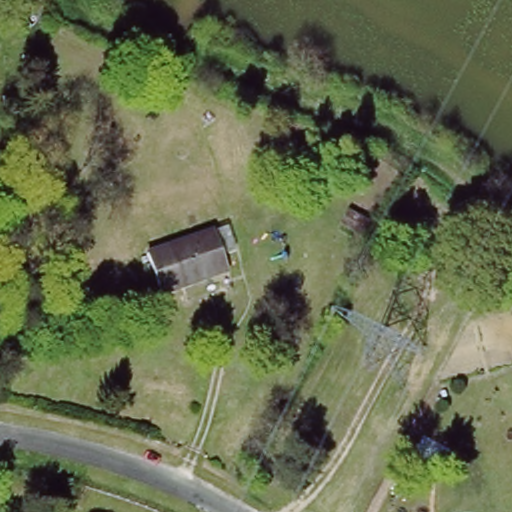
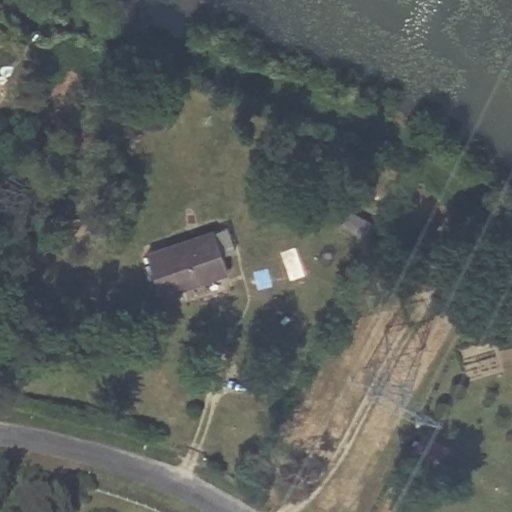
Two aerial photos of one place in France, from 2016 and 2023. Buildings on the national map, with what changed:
unchanged [(380,230),(372,246),(345,229),(354,216),(380,230)]
unchanged [(227,225),(238,251),(222,255),(227,268),(161,292),(147,253),(157,250),(227,225)]

